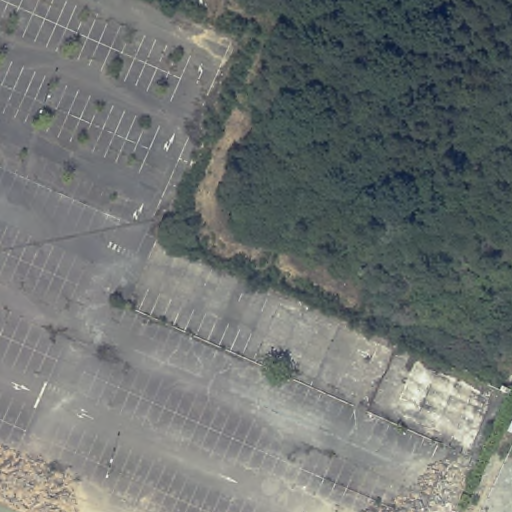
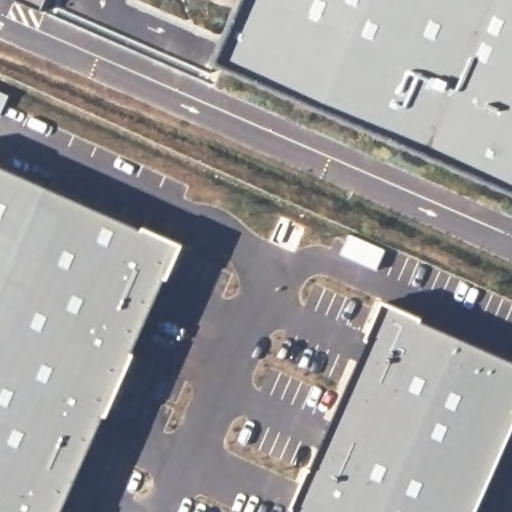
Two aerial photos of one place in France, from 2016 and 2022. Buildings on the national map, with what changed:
new [(499,181),(216,59),(241,0),(512,0),(512,186),(499,181)]
new [(150,225),(117,297),(148,312),(60,512),(0,512),(0,281),(44,182),(150,225)]
new [(380,298),(512,359),(512,426),(474,512),(285,512),(380,298)]
demolished [(499,453),(512,459),(512,512),(475,512),(499,453)]

